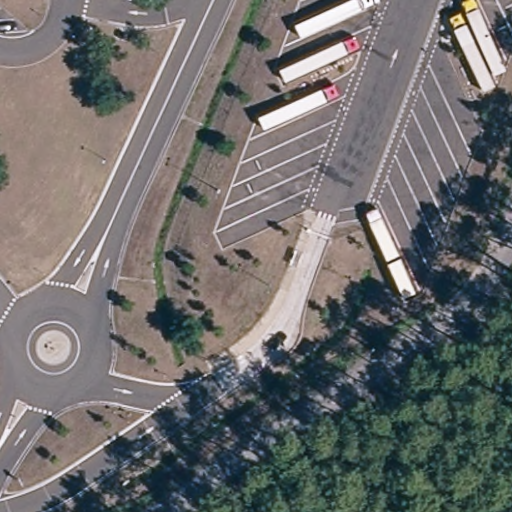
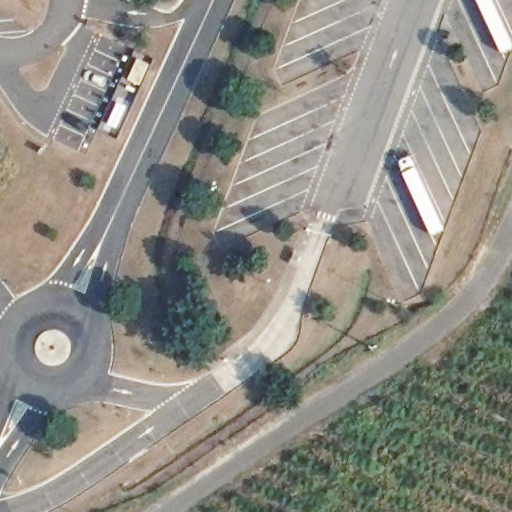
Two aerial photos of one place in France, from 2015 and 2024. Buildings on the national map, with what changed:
[]

